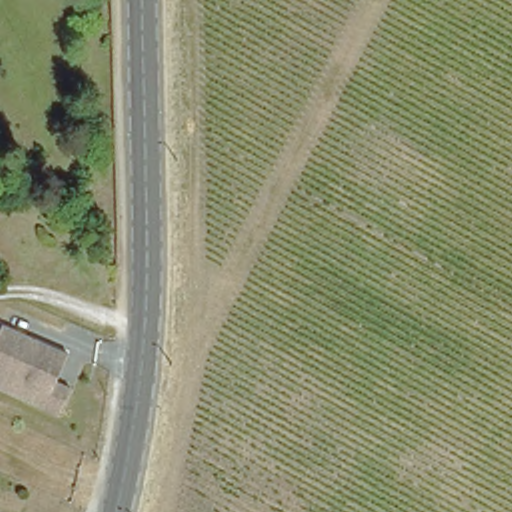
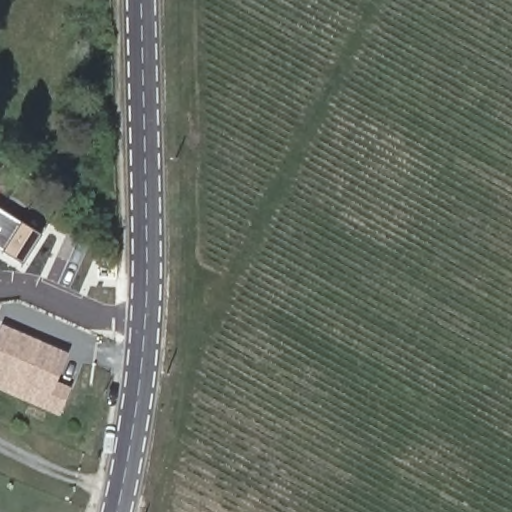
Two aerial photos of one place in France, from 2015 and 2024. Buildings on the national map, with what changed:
new [(39,236),(21,264),(0,250),(0,211),(39,236)]
unchanged [(68,357),(56,385),(71,391),(59,416),(0,390),(0,331),(1,328),(68,357)]

